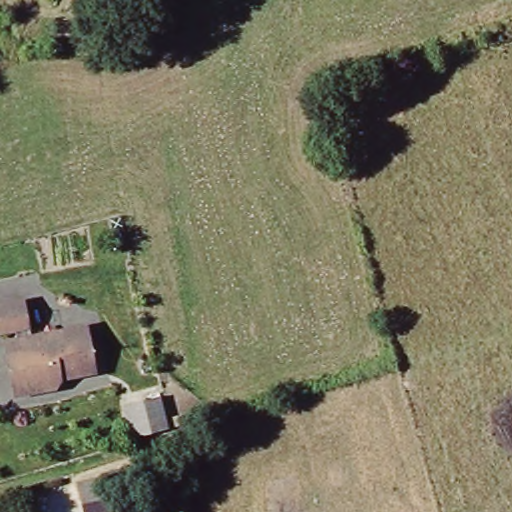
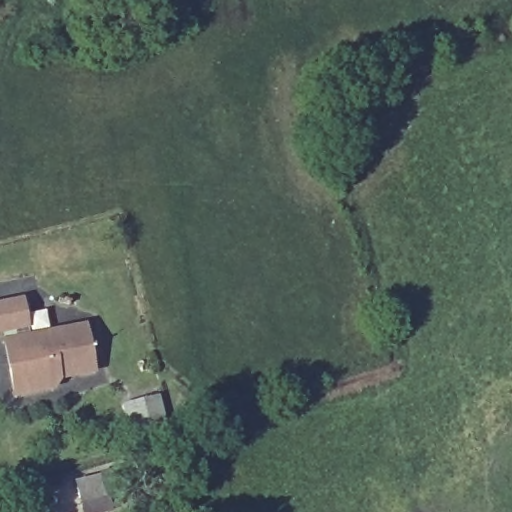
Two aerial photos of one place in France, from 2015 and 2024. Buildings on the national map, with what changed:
unchanged [(0,331),(0,304),(27,299),(33,324),(0,331)]
unchanged [(100,369),(69,374),(61,385),(22,390),(18,366),(14,340),(25,338),(92,324),(100,369)]
unchanged [(159,396),(167,429),(130,436),(123,404),(159,396)]
unchanged [(107,503),(85,508),(80,487),(101,481),(107,503)]

